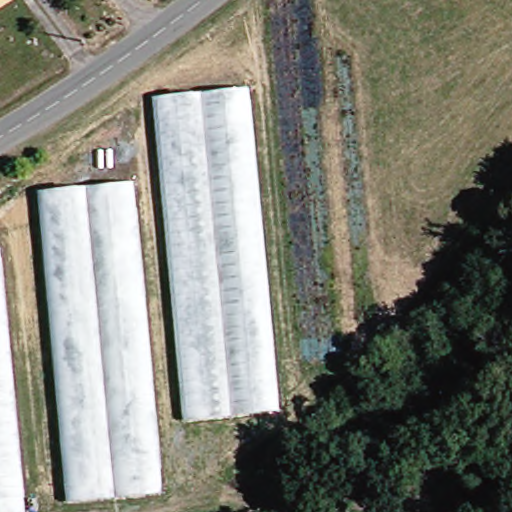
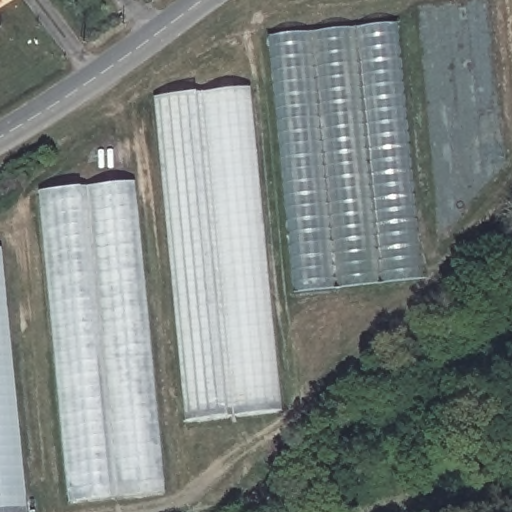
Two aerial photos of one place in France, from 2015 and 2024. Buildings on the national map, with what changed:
new [(267,36),(397,24),(424,279),(295,295),(267,36)]
unchanged [(155,94),(248,88),(280,409),(184,418),(155,94)]
unchanged [(127,181),(157,496),(60,504),(30,191),(127,181)]
unchanged [(0,512),(0,298),(24,512),(0,512)]

